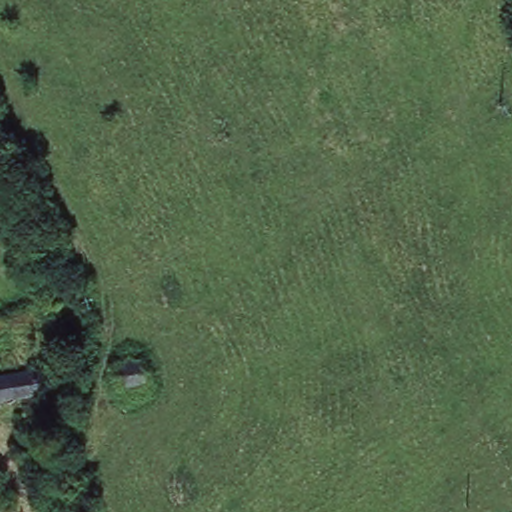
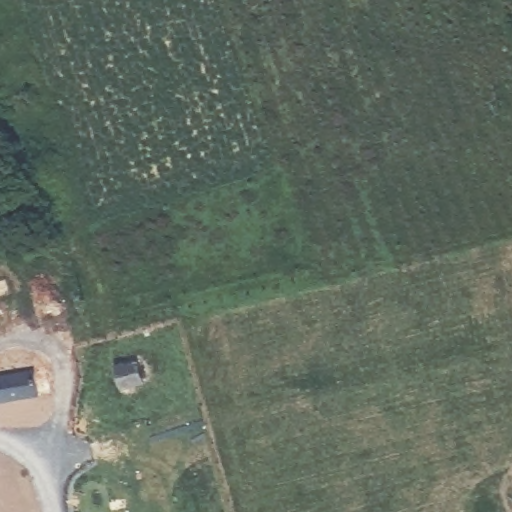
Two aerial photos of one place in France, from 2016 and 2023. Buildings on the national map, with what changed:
unchanged [(133,358),(137,372),(119,377),(115,363),(133,358)]
unchanged [(52,376),(36,378),(38,388),(0,394),(0,372),(53,363),(52,376)]

